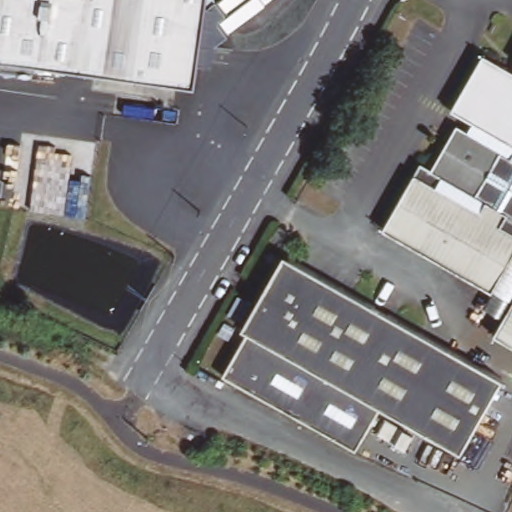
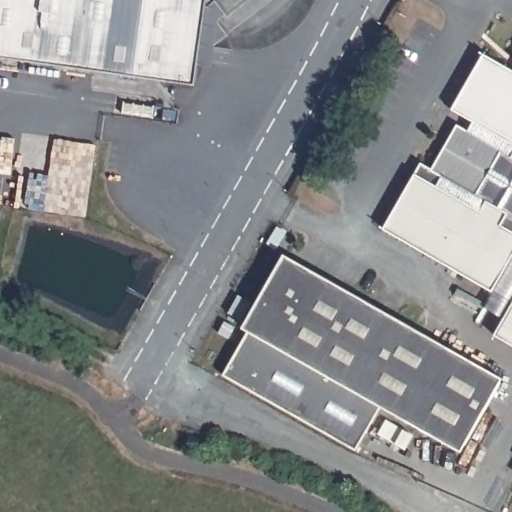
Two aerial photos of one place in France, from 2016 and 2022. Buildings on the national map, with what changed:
unchanged [(229,15),(220,21),(231,36),(217,46),(204,44),(198,85),(0,55),(0,0),(210,0),(210,6),(211,6),(219,0),(229,15)]
unchanged [(489,332),(508,302),(379,226),(411,170),(433,182),(438,172),(427,167),(449,130),(455,120),(466,126),(471,117),(450,105),(482,49),(512,66),(512,346),(489,332)]
unchanged [(290,258),(394,319),(502,382),(459,456),(379,409),(360,442),(353,453),(305,425),(221,375),(247,331),(290,258)]

